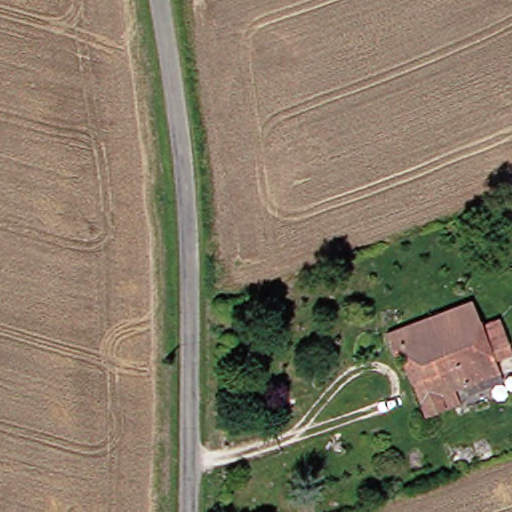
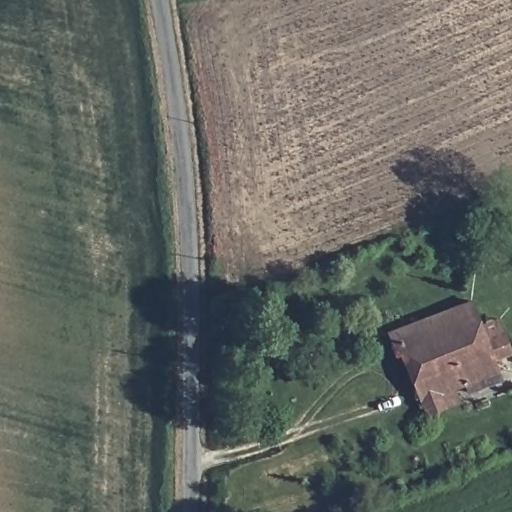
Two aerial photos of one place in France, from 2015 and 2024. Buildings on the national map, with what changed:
unchanged [(407,373),(402,357),(390,359),(382,335),(463,305),(480,343),(499,337),(506,357),(488,364),(492,377),(452,393),(456,404),(422,418),(407,373)]

